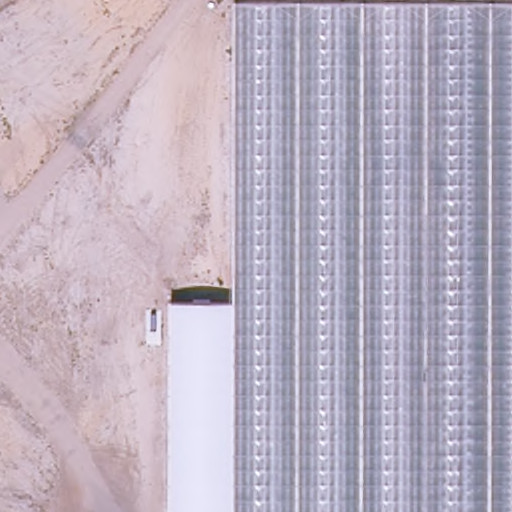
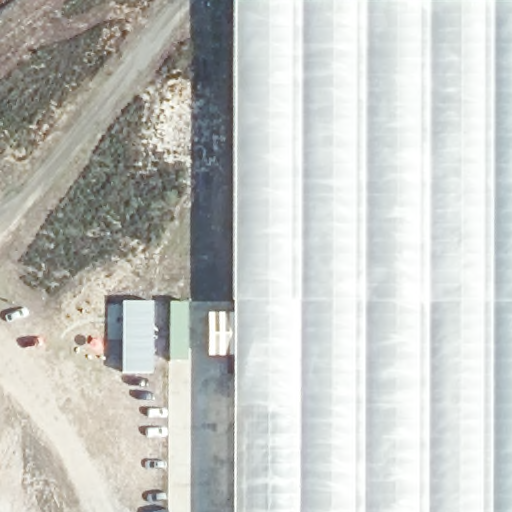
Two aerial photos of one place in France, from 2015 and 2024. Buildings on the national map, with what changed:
unchanged [(169,302),(236,303),(237,2),(512,2),(512,512),(169,512),(169,302)]
new [(153,300),(153,373),(121,373),(121,300),(153,300)]

